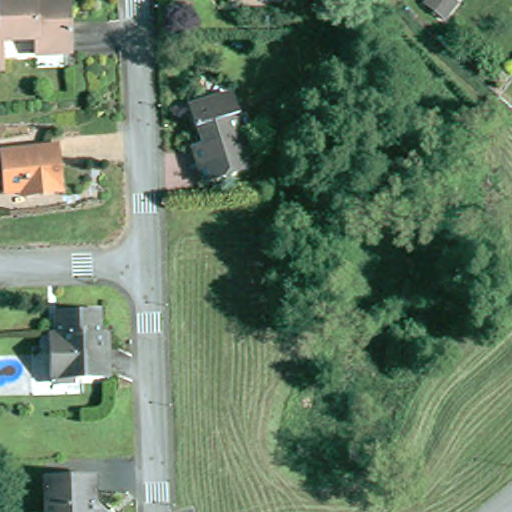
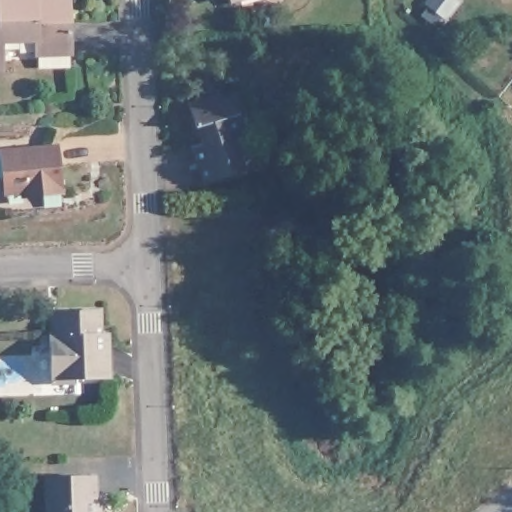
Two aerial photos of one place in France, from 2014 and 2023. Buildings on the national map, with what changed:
unchanged [(79,69),(64,69),(45,70),(44,44),(10,45),(10,71),(0,72),(0,0),(75,0),(76,7),(78,51),(79,69)]
unchanged [(232,88),(239,110),(235,111),(240,129),(243,128),(249,147),(247,147),(252,164),(207,178),(202,161),(195,142),(205,139),(203,131),(205,130),(202,121),(198,122),(191,101),(232,88)]
unchanged [(27,192),(10,193),(5,154),(61,149),(66,194),(46,196),(27,198),(27,192)]
unchanged [(105,316),(106,339),(113,338),(115,378),(89,379),(89,384),(57,385),(56,351),(55,341),(63,341),(62,317),(105,316)]
unchanged [(97,481),(98,497),(95,503),(103,512),(49,512),(48,482),(97,481)]

